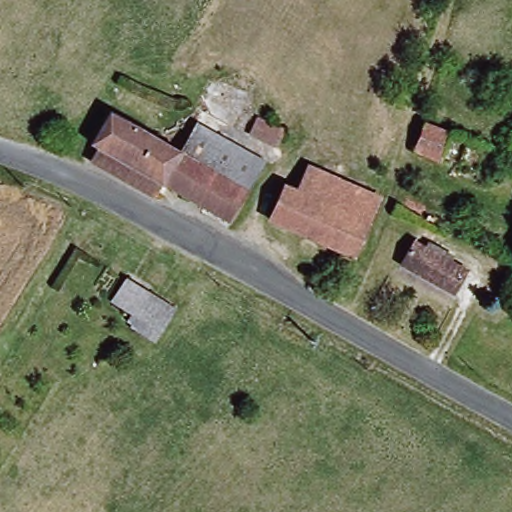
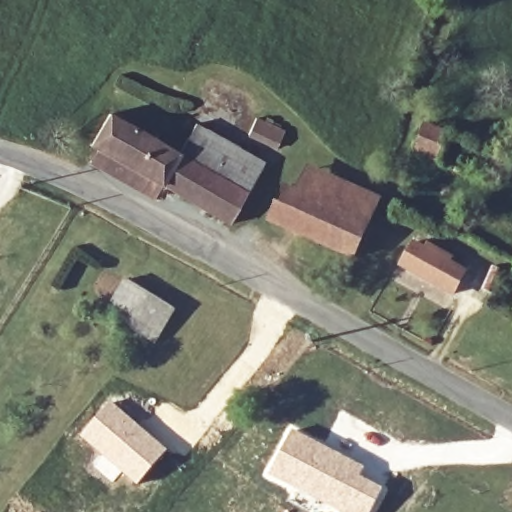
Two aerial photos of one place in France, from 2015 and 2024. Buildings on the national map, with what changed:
unchanged [(156,184),(96,149),(90,146),(107,116),(177,155),(193,127),(232,149),(262,166),(257,176),(229,225),(156,184)]
unchanged [(410,157),(416,129),(469,141),(462,169),(410,157)]
unchanged [(96,149),(156,184),(147,199),(87,166),(96,149)]
unchanged [(302,197),(311,176),(375,202),(367,225),(302,197)]
unchanged [(351,259),(268,223),(282,190),(302,197),(367,225),(351,259)]
unchanged [(402,268),(414,246),(466,276),(452,297),(402,268)]
unchanged [(140,320),(114,305),(129,278),(177,307),(161,332),(156,342),(134,329),(140,320)]
demolished [(0,407),(21,377),(59,402),(15,467),(0,456),(0,407)]
new [(111,401),(168,450),(137,486),(122,473),(113,482),(91,463),(99,453),(80,436),(111,401)]
new [(366,467),(362,475),(384,487),(372,512),(335,512),(262,477),(292,428),(366,467)]
demolished [(0,488),(0,456),(15,467),(0,488)]

